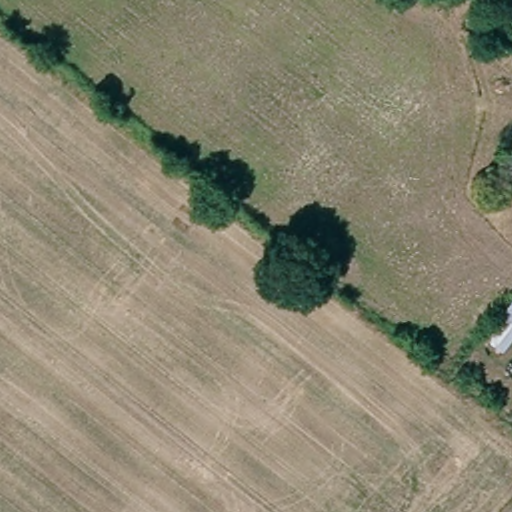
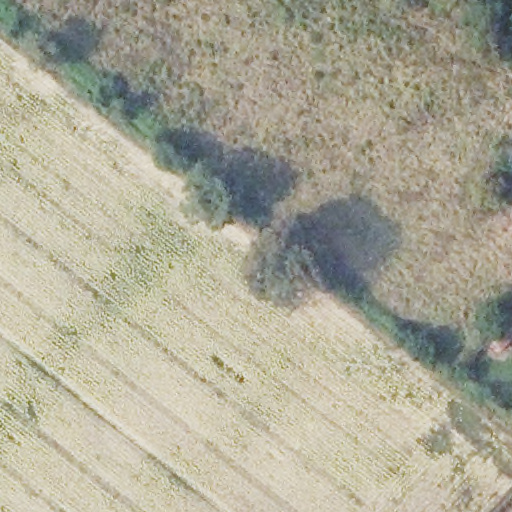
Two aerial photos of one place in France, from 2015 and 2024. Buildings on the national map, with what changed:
[]

